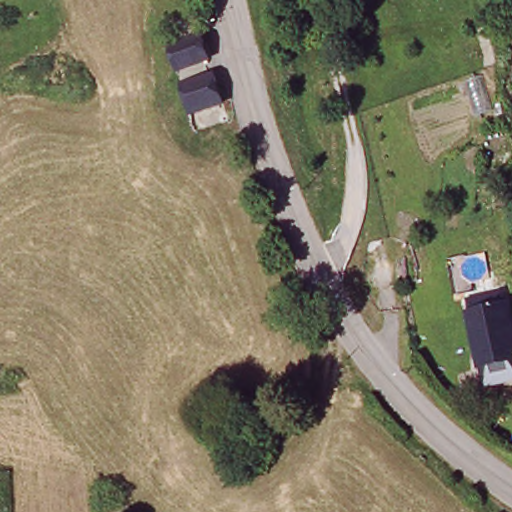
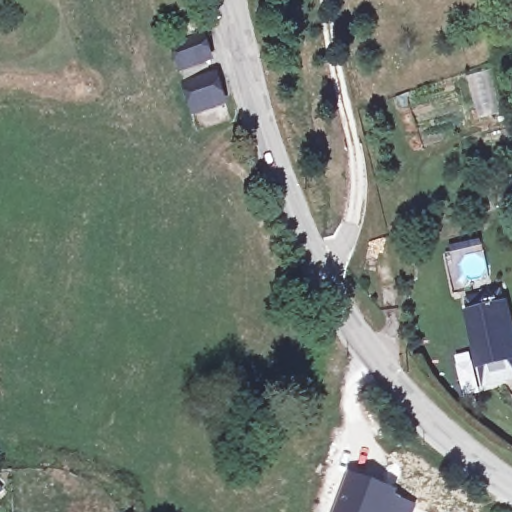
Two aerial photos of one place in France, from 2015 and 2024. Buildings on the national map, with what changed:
unchanged [(202,36),(210,60),(180,69),(172,46),(202,36)]
unchanged [(220,79),(228,104),(229,108),(202,117),(197,118),(192,101),(188,89),(220,79)]
unchanged [(512,368),(485,374),(471,313),(507,305),(512,326),(512,368)]
new [(352,475),(400,493),(398,499),(418,506),(416,512),(337,512),(352,475)]

